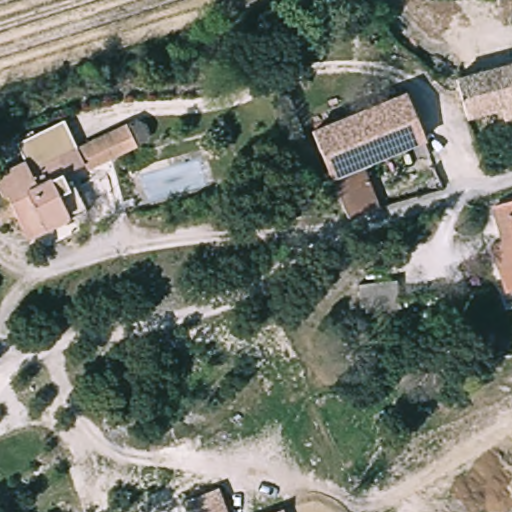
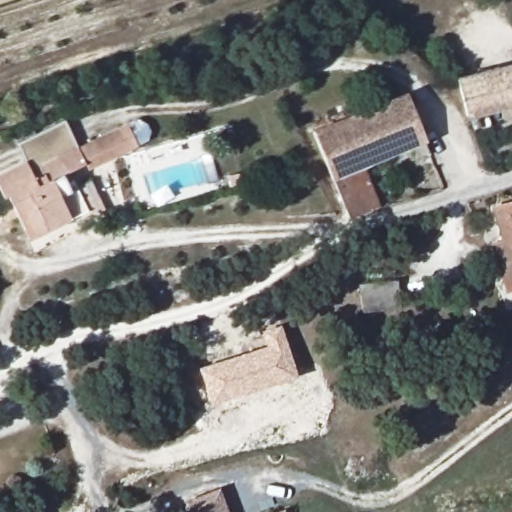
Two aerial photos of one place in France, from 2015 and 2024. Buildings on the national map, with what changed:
unchanged [(508,120),(504,110),(469,123),(457,87),(456,85),(512,65),(512,119),(508,120)]
unchanged [(351,221),(347,206),(313,132),(410,92),(428,140),(366,163),(386,208),(351,221)]
unchanged [(83,149),(134,127),(143,147),(92,169),(83,149)]
unchanged [(37,168),(45,164),(39,151),(70,138),(77,152),(83,149),(92,169),(75,176),(91,214),(73,223),(68,214),(28,232),(13,198),(8,195),(6,194),(0,181),(0,175),(17,166),(33,159),(37,168)]
unchanged [(508,290),(496,244),(507,240),(499,208),(512,205),(512,289),(508,290)]
new [(398,279),(400,306),(363,311),(359,284),(398,279)]
unchanged [(404,323),(368,334),(363,316),(399,305),(404,323)]
new [(266,345),(262,331),(281,324),(296,375),(210,404),(198,367),(266,345)]
unchanged [(221,487),(228,512),(188,512),(184,501),(221,487)]
unchanged [(278,512),(283,510),(283,512),(278,512)]

